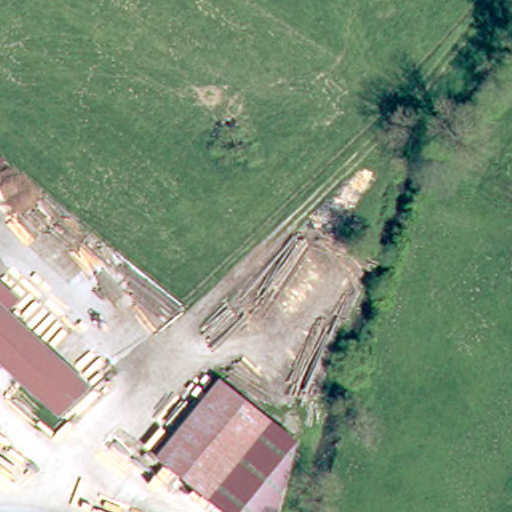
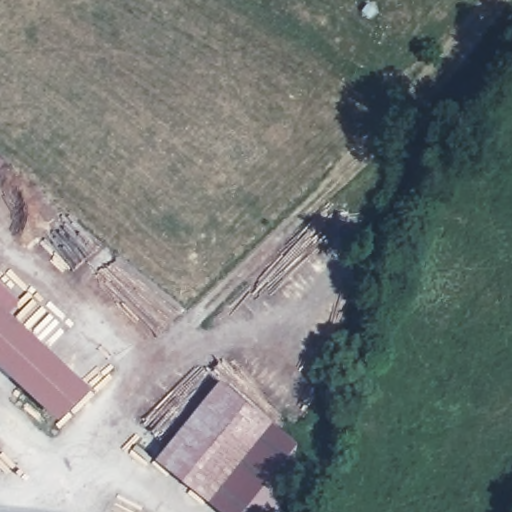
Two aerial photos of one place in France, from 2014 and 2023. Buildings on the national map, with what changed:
unchanged [(4,160),(0,164),(0,156),(4,160)]
unchanged [(64,415),(0,357),(0,303),(92,384),(64,415)]
unchanged [(207,497),(158,459),(220,383),(267,422),(207,497)]
unchanged [(278,512),(224,512),(207,497),(258,434),(267,422),(296,445),(278,512)]

